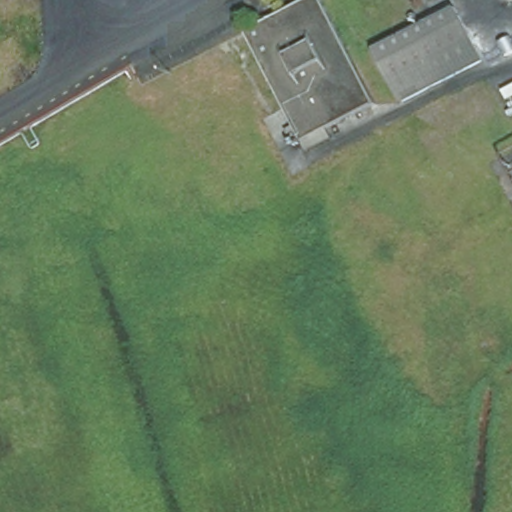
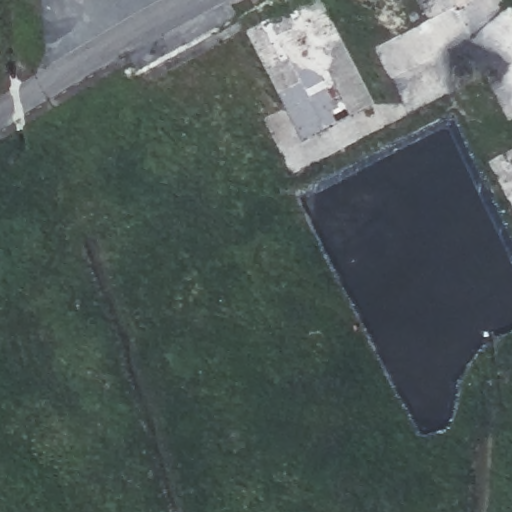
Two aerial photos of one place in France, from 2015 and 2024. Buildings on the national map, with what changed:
demolished [(378,101),(344,120),(303,142),(243,32),(285,10),(303,0),(322,0),(378,101)]
demolished [(489,62),(402,105),(372,47),(459,4),(489,62)]

